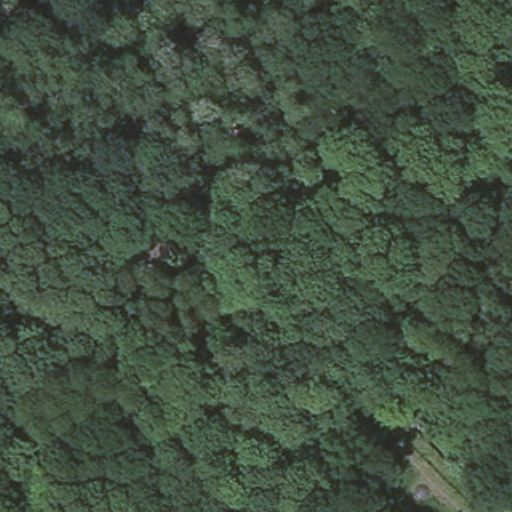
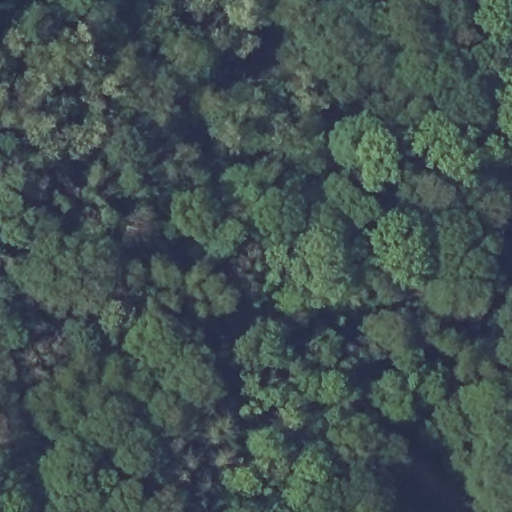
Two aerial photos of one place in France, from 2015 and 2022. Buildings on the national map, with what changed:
unchanged [(0,24),(0,0),(4,0),(0,24)]
unchanged [(122,75),(131,103),(0,86),(0,46),(122,75)]
unchanged [(399,512),(364,479),(381,438),(459,512),(399,512)]

